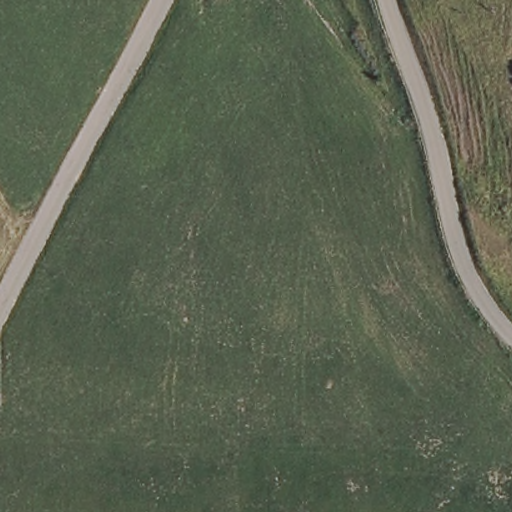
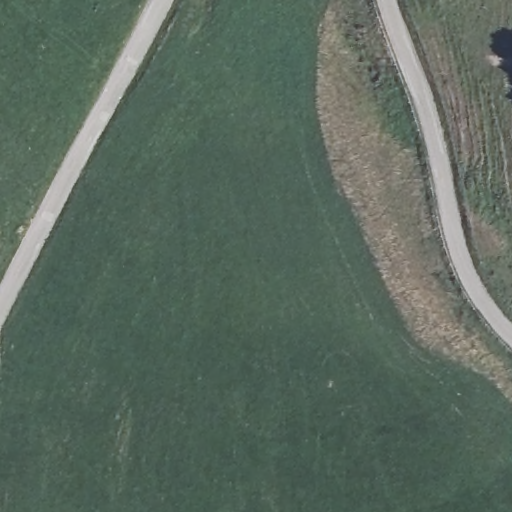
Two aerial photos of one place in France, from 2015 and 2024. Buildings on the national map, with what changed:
[]

